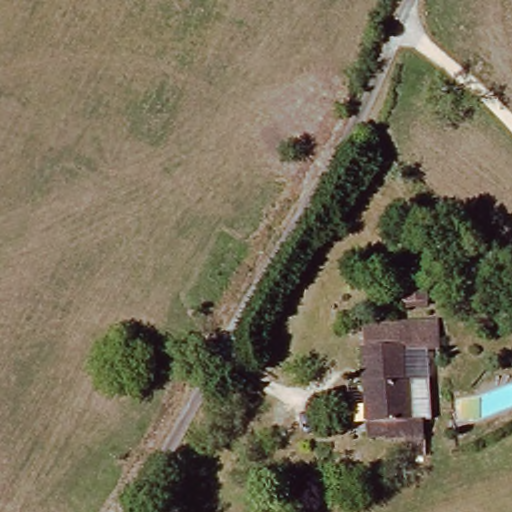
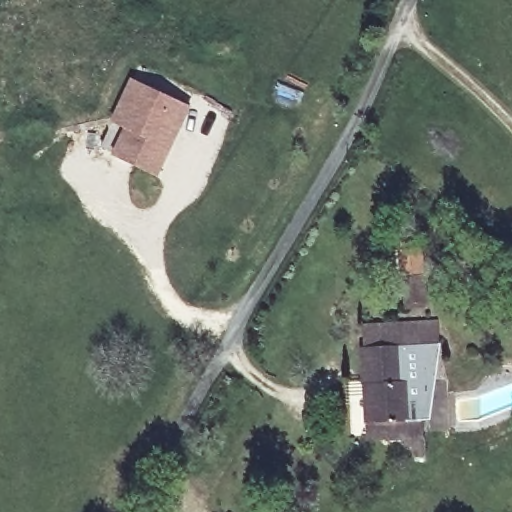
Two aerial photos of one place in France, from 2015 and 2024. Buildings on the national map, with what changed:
new [(124,129),(112,124),(132,78),(191,109),(158,177),(112,156),(124,129)]
unchanged [(385,282),(414,281),(415,306),(386,307),(385,282)]
unchanged [(405,455),(406,440),(382,440),(362,439),(362,421),(361,320),(429,318),(430,352),(420,352),(420,418),(425,418),(424,440),(423,455),(405,455)]

